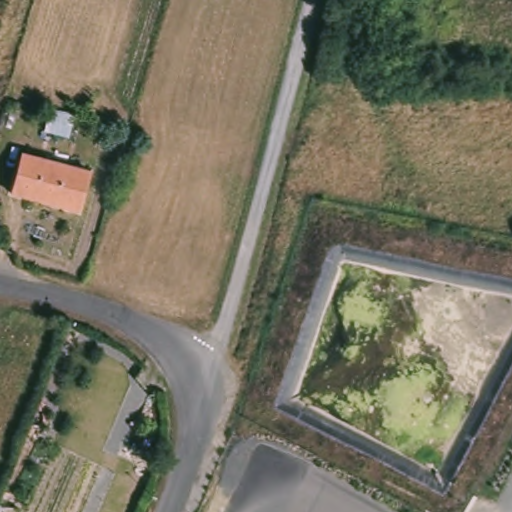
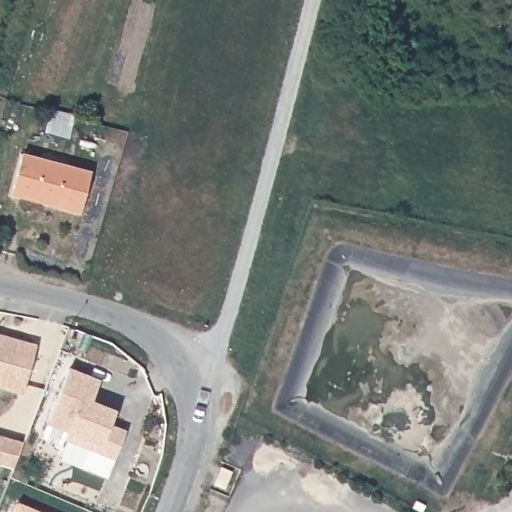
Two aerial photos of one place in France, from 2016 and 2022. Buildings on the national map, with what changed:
unchanged [(89,175),(78,215),(9,197),(21,157),(89,175)]
new [(22,392),(0,386),(0,333),(36,342),(22,392)]
new [(99,379),(90,401),(104,406),(115,410),(113,415),(109,424),(125,430),(114,459),(63,439),(68,427),(48,419),(69,368),(99,379)]
new [(13,466),(0,462),(0,434),(21,440),(13,466)]

